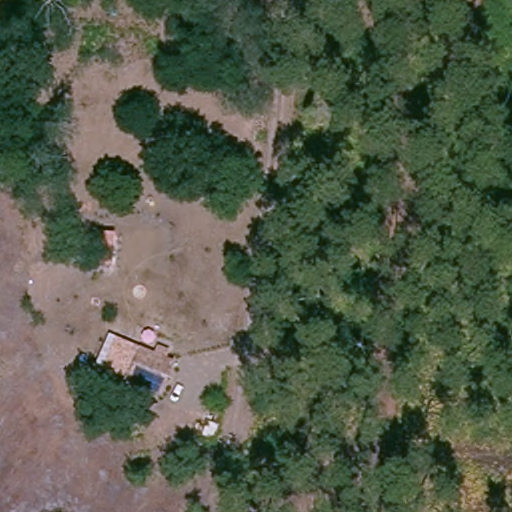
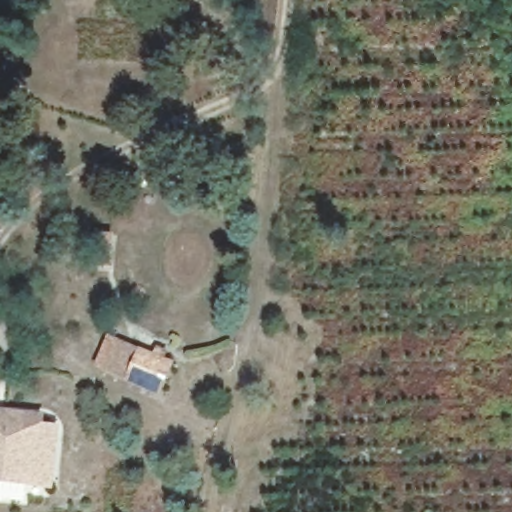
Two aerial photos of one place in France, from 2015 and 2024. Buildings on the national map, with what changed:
unchanged [(160,392),(114,374),(102,369),(113,339),(125,344),(171,361),(160,392)]
new [(0,481),(0,408),(45,413),(44,424),(59,426),(54,487),(0,481)]

